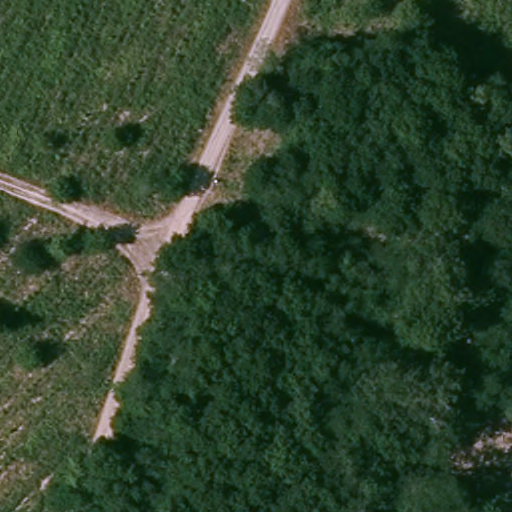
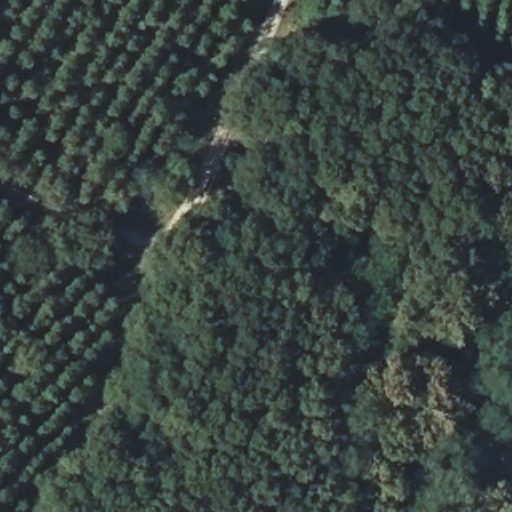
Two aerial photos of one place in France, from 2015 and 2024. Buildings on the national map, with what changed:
[]

